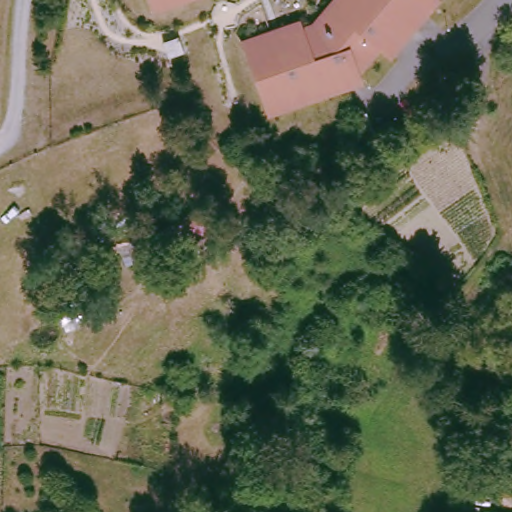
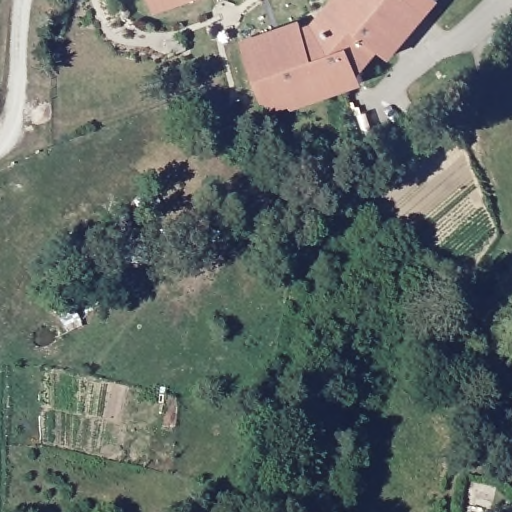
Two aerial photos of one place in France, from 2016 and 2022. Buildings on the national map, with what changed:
unchanged [(151,11),(146,0),(181,0),(151,11)]
unchanged [(396,47),(388,55),(378,46),(358,69),(363,81),(358,82),(266,115),(240,41),(299,19),(301,26),(311,21),(329,0),(436,0),(396,47)]

